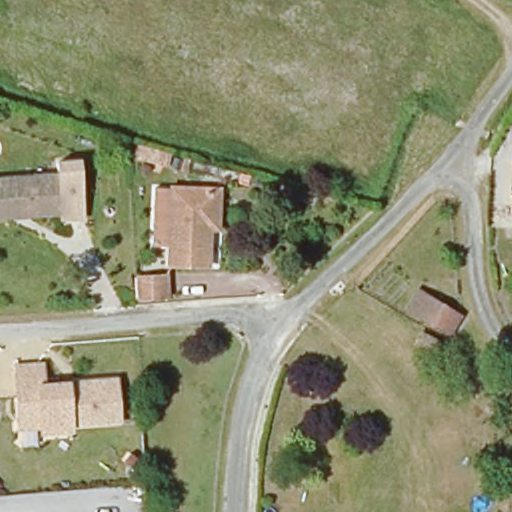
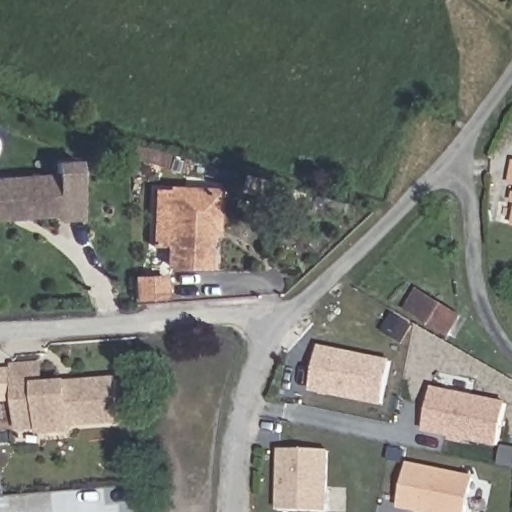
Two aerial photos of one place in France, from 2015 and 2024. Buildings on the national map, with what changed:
unchanged [(62,174),(61,174),(61,158),(84,157),(87,216),(64,216),(62,174)]
unchanged [(0,218),(0,177),(62,174),(64,216),(31,217),(22,217),(0,218)]
unchanged [(219,233),(212,232),(206,267),(169,262),(170,247),(153,245),(158,207),(161,186),(224,195),(223,203),(219,233)]
unchanged [(142,277),(167,277),(168,297),(142,295),(142,277)]
unchanged [(465,319),(452,338),(406,310),(420,292),(465,319)]
new [(311,391),(320,346),(390,361),(381,405),(311,391)]
unchanged [(70,423),(67,429),(45,430),(43,425),(20,425),(16,364),(43,362),(43,384),(74,382),(76,422),(70,423)]
unchanged [(74,382),(116,379),(119,420),(76,422),(74,382)]
new [(424,431),(433,388),(508,404),(500,446),(424,431)]
new [(279,450),(331,452),(329,511),(278,509),(279,450)]
new [(475,477),(468,512),(413,512),(399,509),(408,463),(475,477)]

